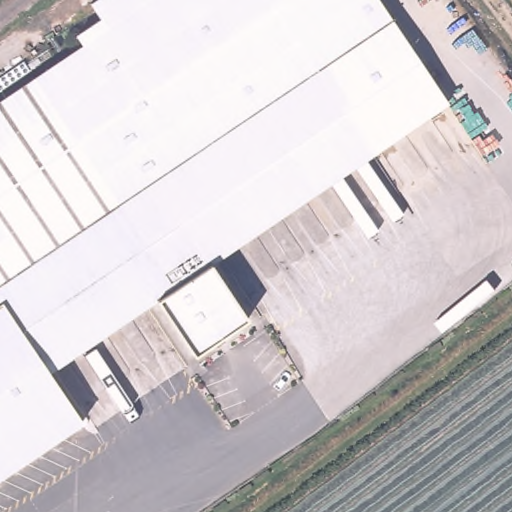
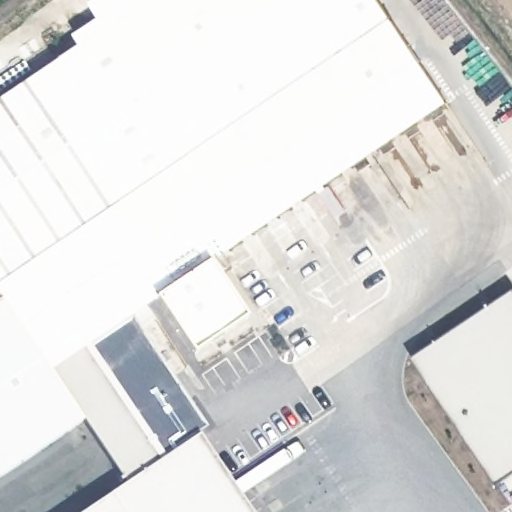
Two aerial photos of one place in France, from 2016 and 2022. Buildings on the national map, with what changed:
unchanged [(383,0),(452,104),(377,154),(213,262),(252,321),(197,357),(158,299),(54,367),(89,420),(0,478),(0,102),(112,27),(153,0),(383,0)]
unchanged [(153,0),(112,27),(94,0),(153,0)]
new [(512,475),(497,486),(412,359),(512,290),(512,475)]
new [(125,485),(83,424),(89,420),(54,367),(82,349),(161,460),(200,435),(251,512),(84,512),(125,485)]

